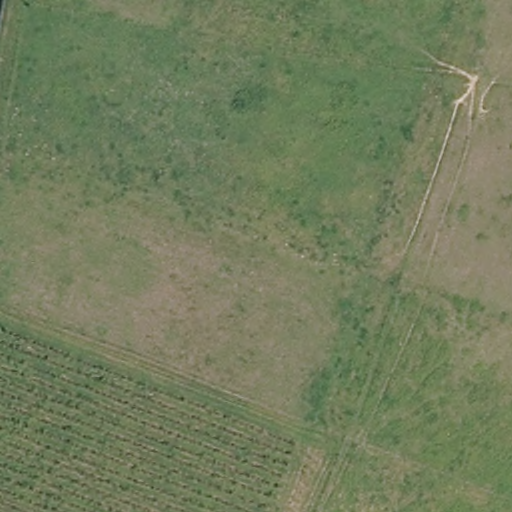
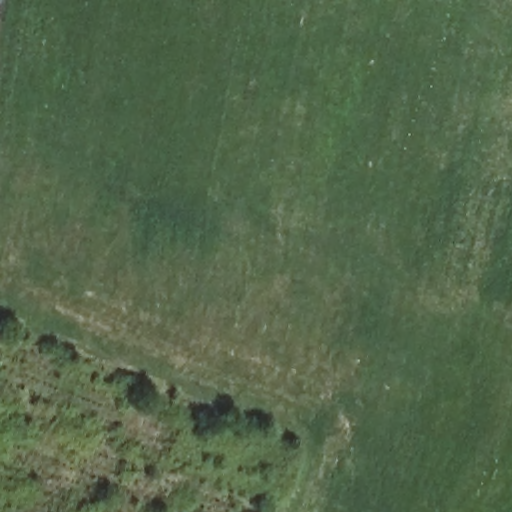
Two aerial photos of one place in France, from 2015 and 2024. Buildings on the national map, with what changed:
[]

